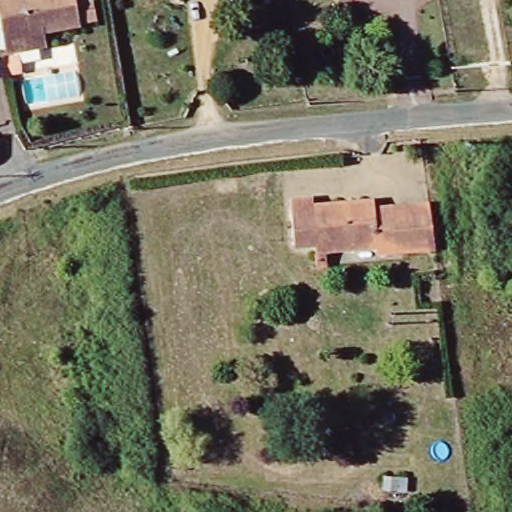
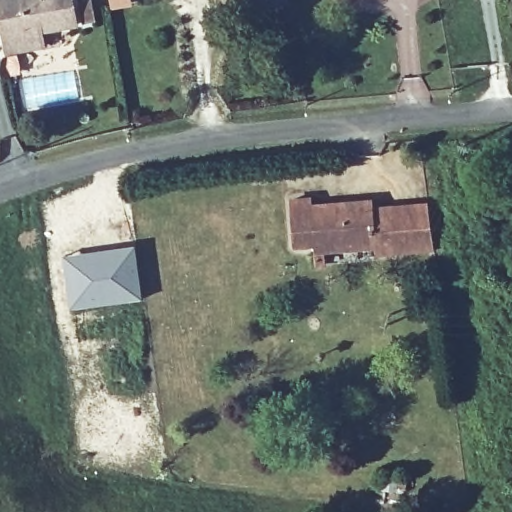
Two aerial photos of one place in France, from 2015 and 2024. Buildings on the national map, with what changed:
unchanged [(0,39),(0,35),(0,0),(69,0),(73,28),(35,34),(18,36),(0,39)]
unchanged [(79,24),(78,13),(82,12),(88,11),(89,22),(83,23),(79,24)]
unchanged [(312,251),(311,243),(290,246),(285,202),(308,199),(308,206),(367,199),(368,206),(371,206),(379,250),(374,250),(372,243),(312,251)]
unchanged [(371,206),(424,201),(431,245),(379,250),(371,206)]
new [(135,244),(142,300),(69,310),(61,255),(135,244)]

